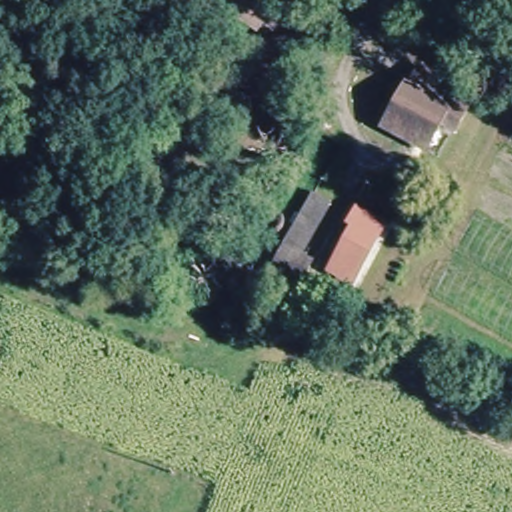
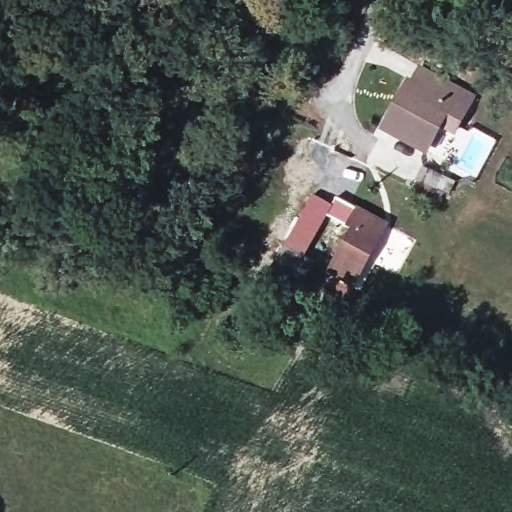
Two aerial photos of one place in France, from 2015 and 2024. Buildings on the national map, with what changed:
unchanged [(223,0),(278,0),(280,1),(257,30),(220,6),(223,0)]
unchanged [(298,85),(279,111),(216,74),(233,44),(298,85)]
unchanged [(408,71),(410,72),(417,60),(475,92),(453,131),(442,125),(428,150),(380,124),(408,71)]
unchanged [(42,133),(12,121),(27,88),(56,104),(42,133)]
unchanged [(331,204),(302,255),(312,261),(288,304),(260,288),(312,194),(331,204)]
unchanged [(350,286),(325,272),(350,227),(345,225),(356,205),(386,221),(350,286)]

